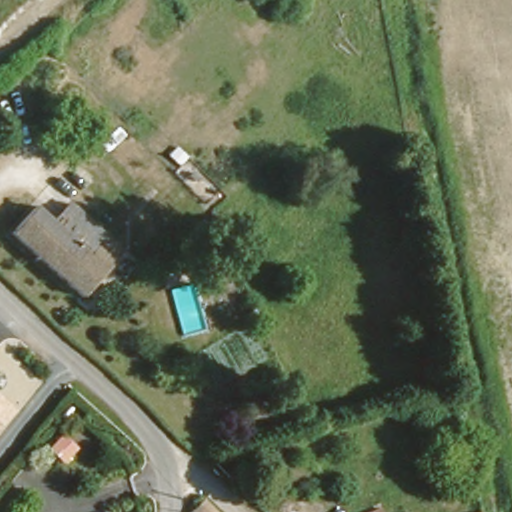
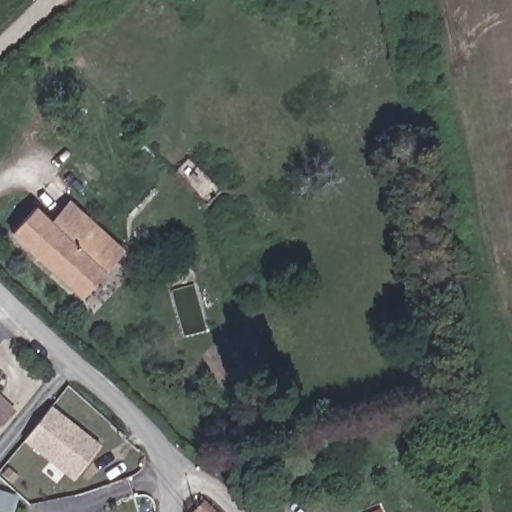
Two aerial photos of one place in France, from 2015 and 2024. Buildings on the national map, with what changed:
unchanged [(85,292),(14,229),(36,204),(54,219),(71,199),(125,250),(85,292)]
new [(101,447),(74,479),(25,440),(53,407),(101,447)]
unchanged [(381,501),(385,507),(386,512),(353,512),(381,501)]
unchanged [(205,502),(215,512),(194,512),(205,502)]

